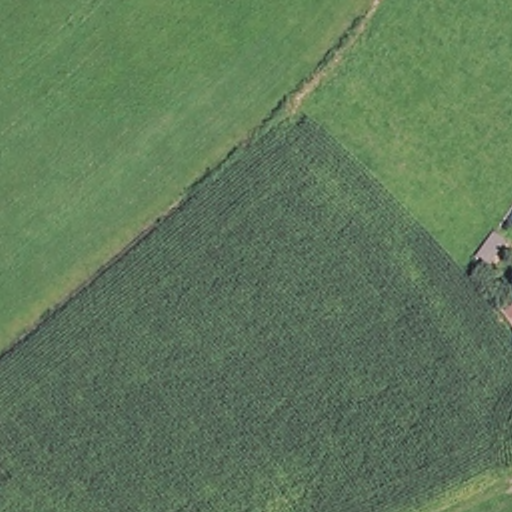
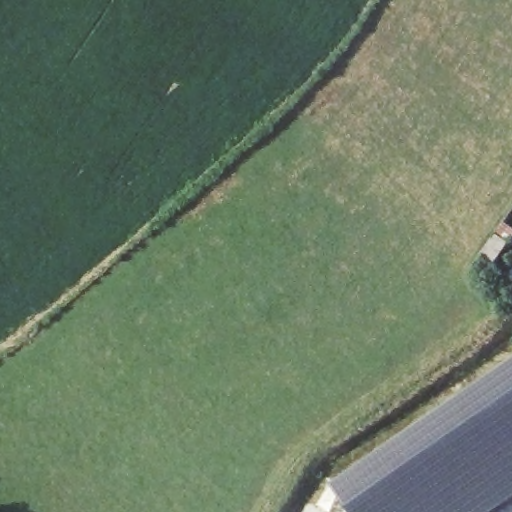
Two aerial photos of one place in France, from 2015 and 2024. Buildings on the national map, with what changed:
new [(512,358),(512,496),(488,512),(348,512),(329,484),(512,358)]

